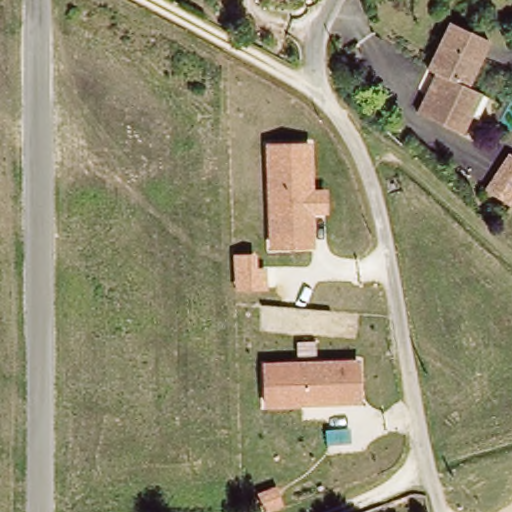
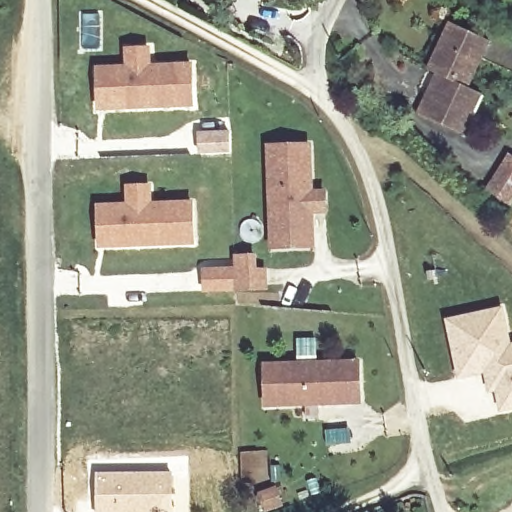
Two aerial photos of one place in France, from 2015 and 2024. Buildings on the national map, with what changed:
unchanged [(479,111),(470,130),(427,105),(435,89),(446,67),(439,63),(459,19),(498,38),(478,86),(489,92),(479,111)]
new [(93,70),(123,69),(123,50),(143,49),(144,68),(186,65),(188,106),(118,109),(94,110),(94,104),(93,70)]
new [(230,131),(230,151),(200,153),(199,133),(230,131)]
unchanged [(313,143),(314,190),(328,189),(329,214),(314,214),(315,248),(270,250),(266,144),(313,143)]
unchanged [(512,165),(512,197),(497,187),(512,165)]
new [(94,207),(125,205),(124,188),(144,186),(145,204),(188,202),(190,242),(120,246),(96,247),(96,239),(94,207)]
new [(234,255),(254,254),(255,269),(266,269),(266,285),(236,288),(206,289),(205,269),(235,268),(234,255)]
new [(512,409),(499,412),(496,393),(488,394),(483,374),(458,380),(445,319),(503,306),(511,343),(512,343),(512,409)]
unchanged [(364,405),(265,408),(265,362),(362,358),(364,405)]
new [(267,449),(271,481),(241,485),(239,451),(267,449)]
new [(173,470),(174,512),(94,512),(94,471),(173,470)]
new [(277,485),(284,506),(263,512),(261,512),(255,491),(277,485)]

